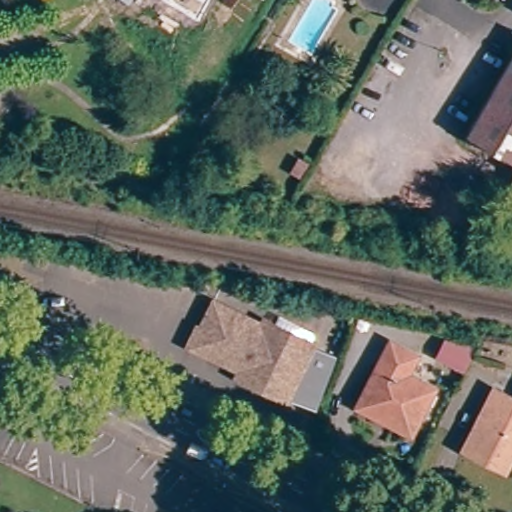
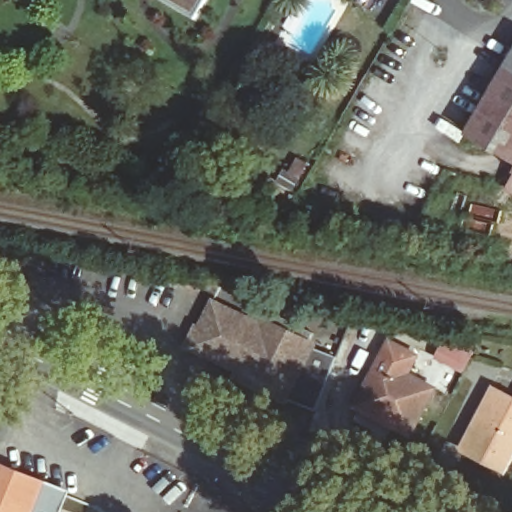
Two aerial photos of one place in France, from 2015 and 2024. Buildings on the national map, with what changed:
new [(170,0),(210,0),(200,17),(170,0)]
unchanged [(473,139),(479,127),(512,71),(512,161),(473,139)]
new [(507,189),(512,179),(512,192),(507,189)]
unchanged [(214,301),(260,328),(263,323),(313,353),(280,407),(230,378),(234,372),(199,352),(194,335),(214,301)]
unchanged [(412,429),(363,405),(394,341),(421,354),(410,376),(433,387),(412,429)]
unchanged [(471,435),(496,386),(512,393),(512,451),(505,465),(489,456),(466,445),(471,435)]
new [(69,490),(61,512),(0,512),(0,462),(46,481),(69,490)]

